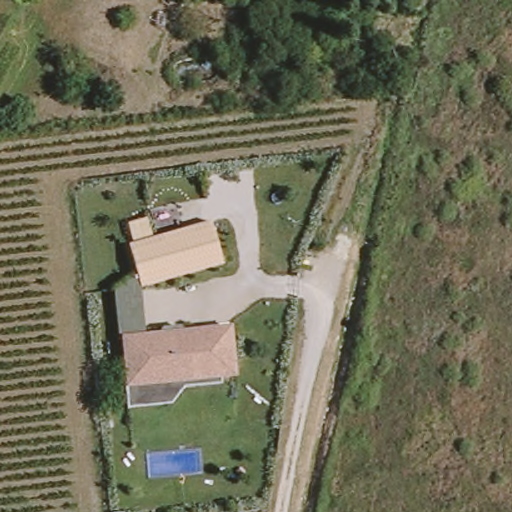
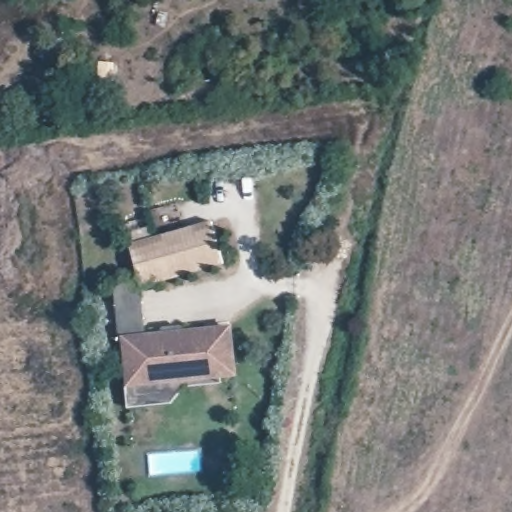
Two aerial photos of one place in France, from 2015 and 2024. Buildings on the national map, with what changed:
unchanged [(116,336),(111,285),(132,278),(125,246),(207,225),(219,263),(135,290),(139,334),(227,327),(232,378),(179,385),(165,402),(124,405),(116,336)]

